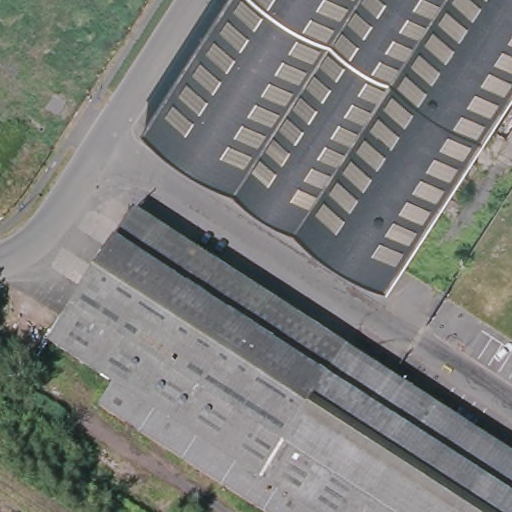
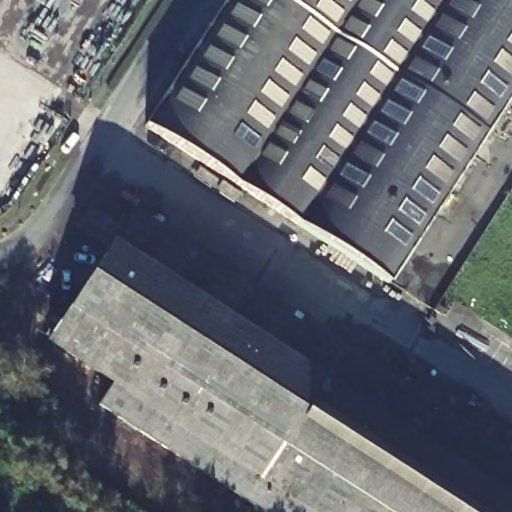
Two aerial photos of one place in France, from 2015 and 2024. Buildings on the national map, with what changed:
unchanged [(297,220),(288,214),(229,176),(203,159),(145,122),(166,89),(168,86),(204,31),(223,2),(224,0),(441,0),(389,81),(297,220)]
unchanged [(347,252),(297,220),(389,81),(441,0),(512,0),(512,84),(388,278),(347,252)]
unchanged [(99,268),(137,210),(138,209),(196,246),(240,275),(255,284),(313,322),(372,359),(394,374),(450,410),(472,424),(511,450),(512,450),(512,512),(275,512),(160,437),(104,400),(117,378),(92,362),(54,338),(61,326),(99,268)]

